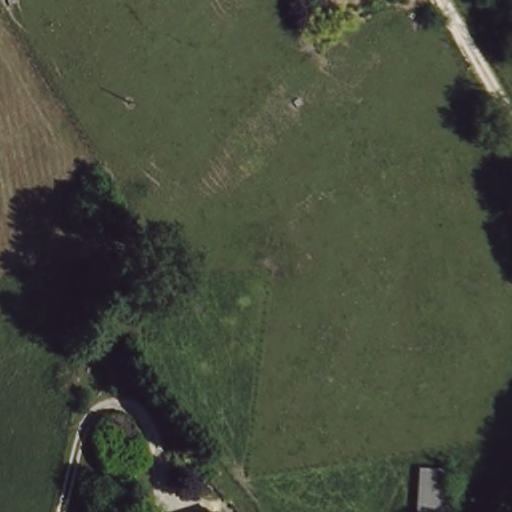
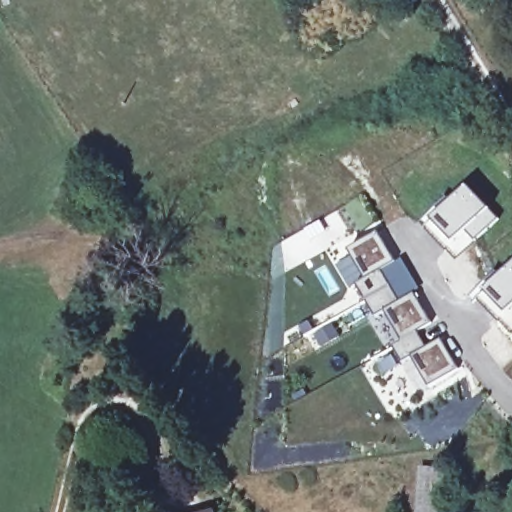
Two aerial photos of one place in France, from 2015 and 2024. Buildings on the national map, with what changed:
new [(423,227),(432,220),(465,189),(487,210),(497,219),(475,240),(455,260),(423,227)]
new [(354,275),(363,269),(345,240),(375,221),(393,252),(380,260),(388,276),(363,291),(354,275)]
new [(512,329),(509,332),(475,299),(482,290),(512,262),(512,329)]
new [(388,276),(397,291),(412,283),(430,314),(400,331),(382,302),(373,307),(363,291),(388,276)]
new [(415,322),(425,338),(438,330),(456,360),(426,378),(409,348),(400,353),(390,337),(415,322)]
unchanged [(452,512),(415,512),(415,469),(452,471),(452,512)]

